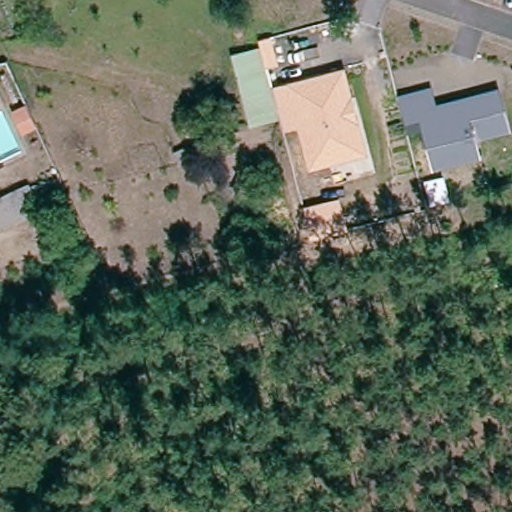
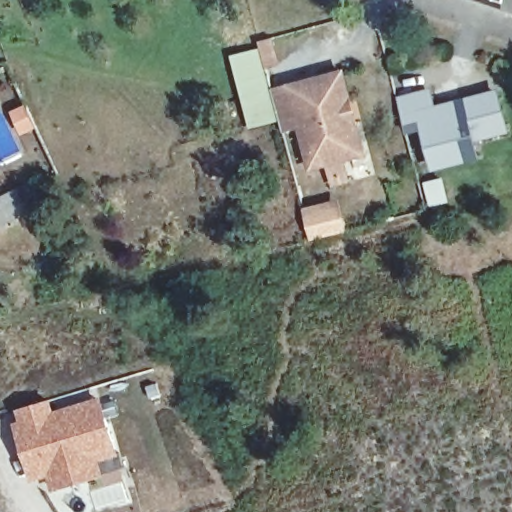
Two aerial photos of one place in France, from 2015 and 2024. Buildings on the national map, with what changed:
unchanged [(233,55),(259,48),(279,120),(251,127),(233,55)]
unchanged [(345,69),(368,155),(310,171),(299,129),(283,134),(279,120),(271,89),(345,69)]
unchanged [(398,96),(433,90),(438,104),(498,87),(512,132),(476,140),(481,158),(434,170),(423,132),(407,135),(398,96)]
unchanged [(16,115),(29,110),(36,125),(24,130),(16,115)]
unchanged [(38,187),(60,180),(64,191),(55,195),(58,202),(45,207),(38,187)]
unchanged [(30,187),(39,208),(30,213),(0,227),(0,201),(20,192),(30,187)]
unchanged [(341,197),(350,232),(310,242),(302,207),(341,197)]
new [(56,410),(103,397),(121,457),(101,463),(105,476),(54,493),(48,476),(30,481),(14,425),(20,423),(16,410),(51,400),(56,410)]

